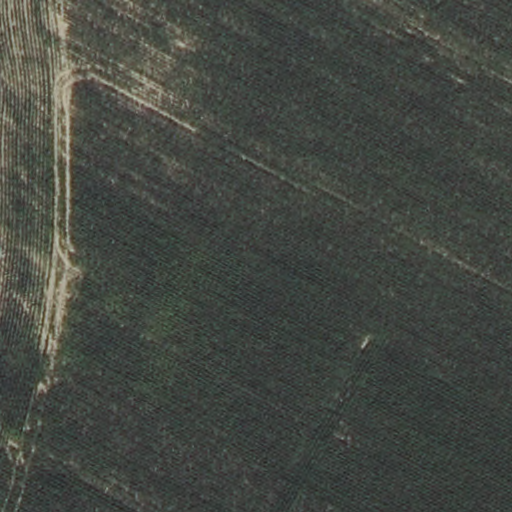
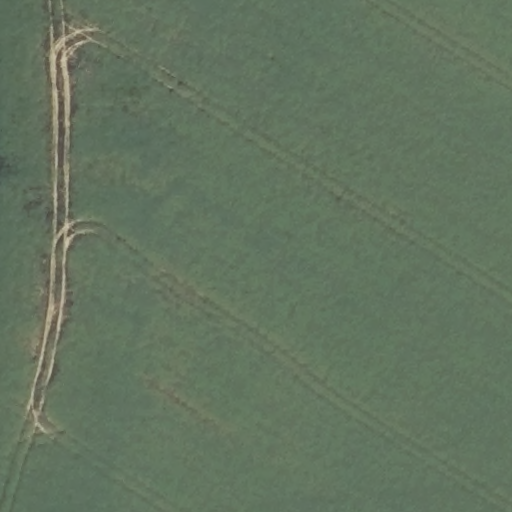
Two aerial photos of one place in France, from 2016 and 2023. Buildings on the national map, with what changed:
[]

